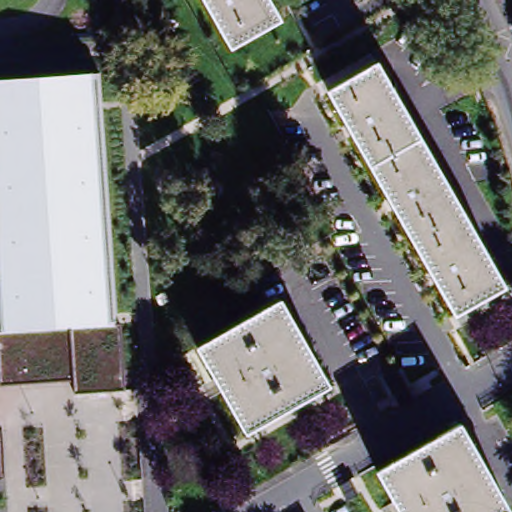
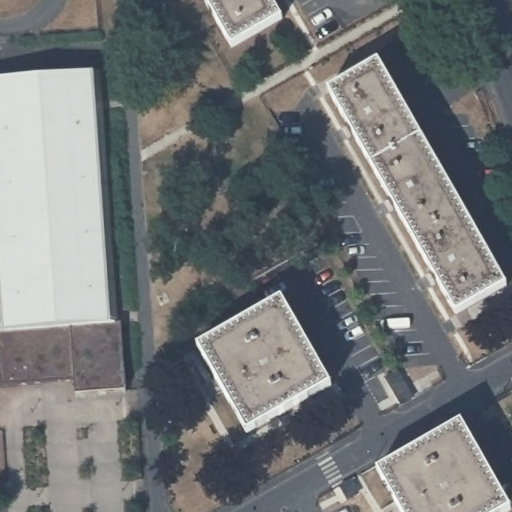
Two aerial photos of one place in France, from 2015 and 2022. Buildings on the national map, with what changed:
unchanged [(230,46),(203,0),(267,0),(277,18),(230,46)]
unchanged [(507,290),(458,318),(331,94),(378,67),(507,290)]
unchanged [(115,325),(0,333),(0,82),(98,75),(115,325)]
unchanged [(330,390),(250,435),(202,351),(281,306),(330,390)]
unchanged [(118,326),(124,391),(75,393),(74,381),(1,386),(0,351),(0,333),(115,325),(118,326)]
unchanged [(509,512),(403,512),(381,474),(460,430),(509,512)]

